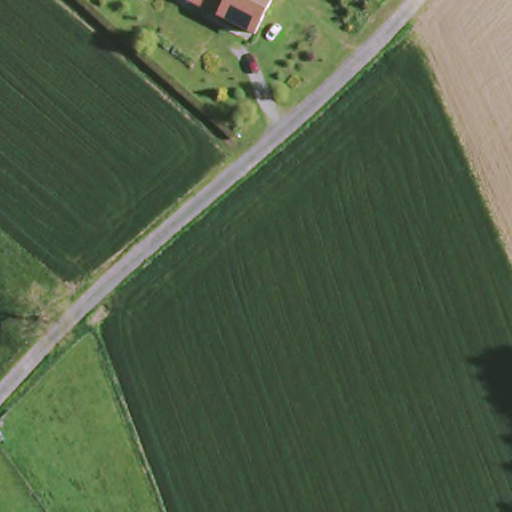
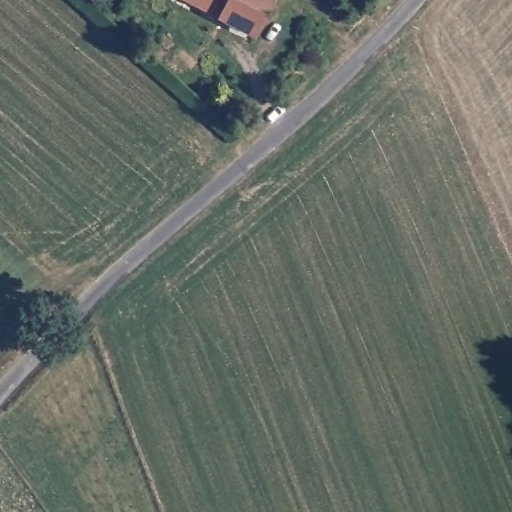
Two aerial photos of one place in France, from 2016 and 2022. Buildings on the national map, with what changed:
unchanged [(218,16),(178,0),(268,0),(254,31),(218,16)]

